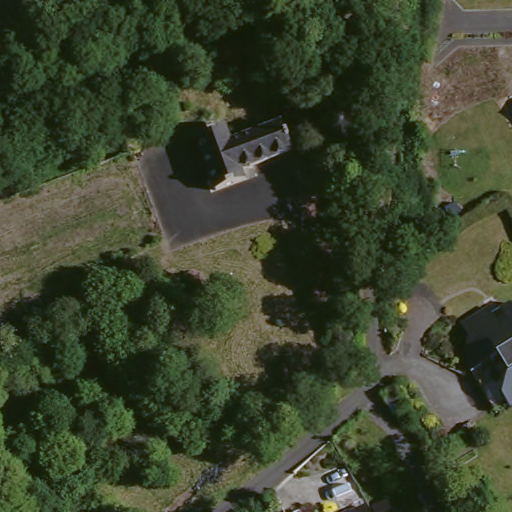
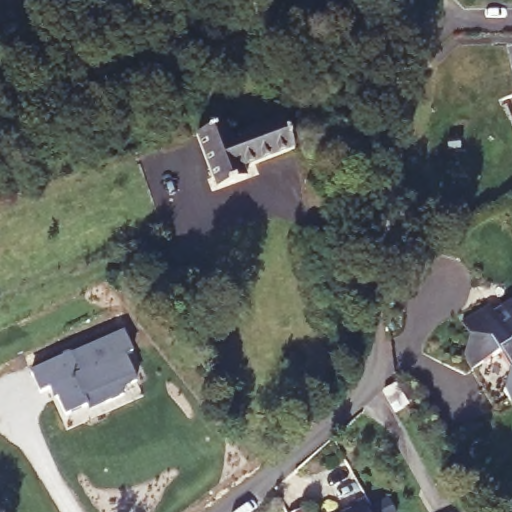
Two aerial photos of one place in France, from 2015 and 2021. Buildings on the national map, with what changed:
unchanged [(217,134),(224,149),(273,132),(283,161),(234,178),(237,188),(211,198),(191,144),(217,134)]
unchanged [(494,416),(466,366),(471,344),(464,333),(491,316),(494,322),(512,312),(512,415),(508,410),(494,416)]
new [(84,403),(63,413),(49,385),(41,388),(32,368),(72,349),(73,350),(119,329),(128,348),(121,352),(133,379),(117,386),(120,393),(103,400),(86,408),(84,403)]
unchanged [(396,393),(406,414),(395,419),(385,397),(396,393)]

